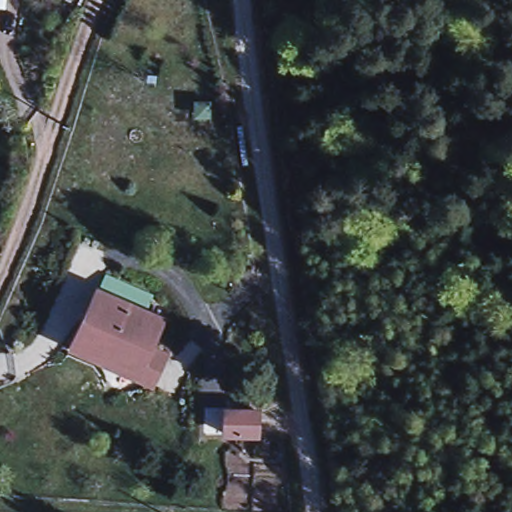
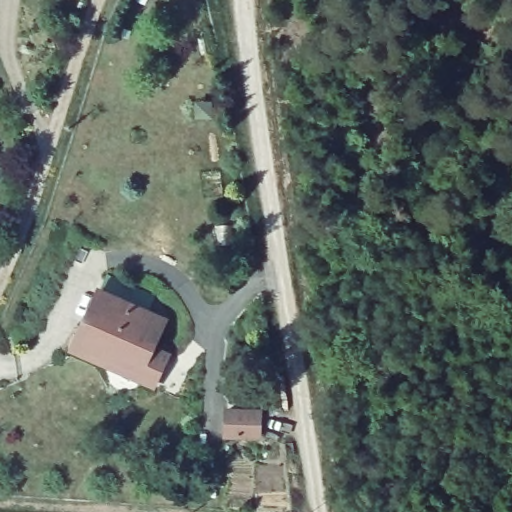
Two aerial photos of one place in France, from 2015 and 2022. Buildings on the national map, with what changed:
unchanged [(145,396),(128,389),(128,387),(66,359),(89,309),(96,292),(142,313),(135,329),(151,337),(140,362),(157,370),(145,396)]
unchanged [(255,411),(253,437),(221,435),(222,410),(255,411)]

